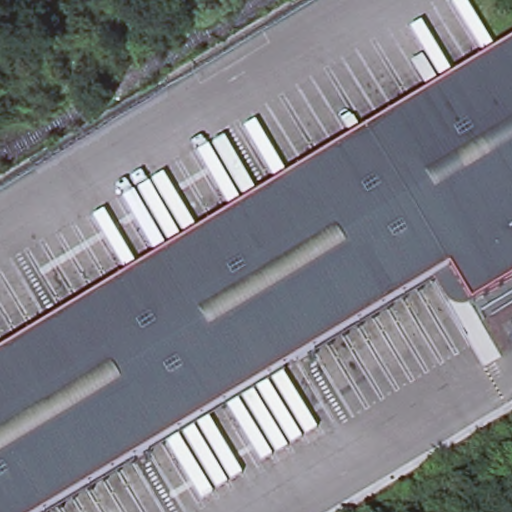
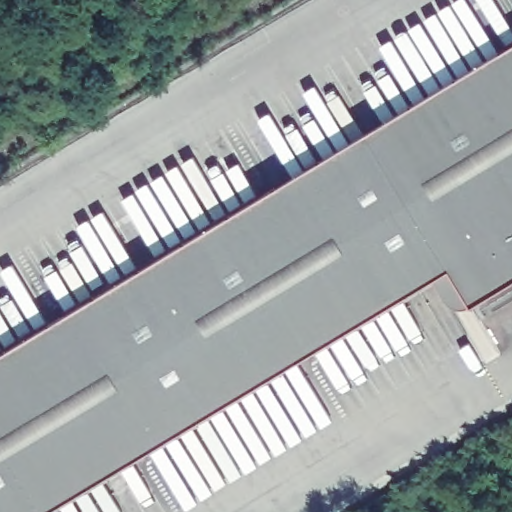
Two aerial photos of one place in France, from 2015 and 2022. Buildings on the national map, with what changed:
unchanged [(512,41),(512,278),(469,304),(447,267),(364,131),(499,49),(512,41)]
unchanged [(46,512),(0,512),(0,351),(364,131),(447,267),(46,512)]

